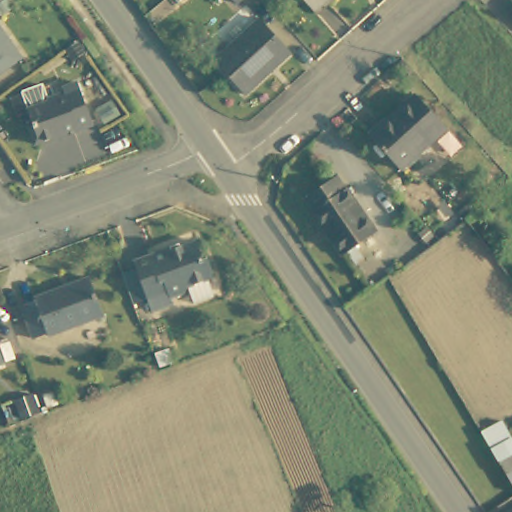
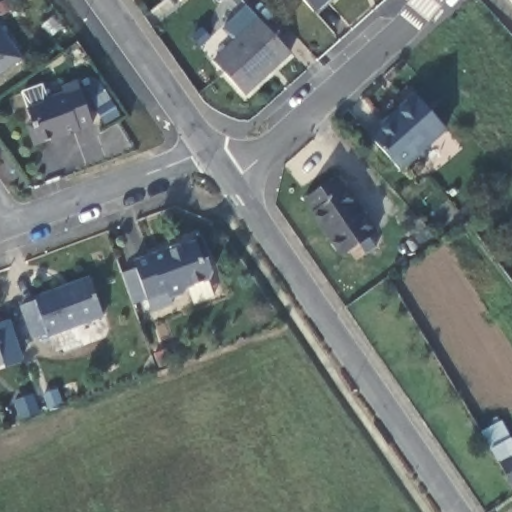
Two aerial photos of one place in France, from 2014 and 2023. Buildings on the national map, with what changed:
unchanged [(231,0),(241,0),(236,5),(231,0)]
unchanged [(309,0),(328,0),(317,10),(309,0)]
unchanged [(293,49),(247,91),(217,58),(239,38),(232,30),(244,19),(252,27),(263,16),(293,49)]
unchanged [(0,65),(0,25),(19,51),(0,65)]
unchanged [(50,96),(67,89),(65,84),(80,78),(96,119),(37,142),(29,120),(34,118),(29,106),(51,99),(50,96)]
unchanged [(403,168),(372,136),(418,95),(448,127),(403,168)]
unchanged [(337,173),(374,230),(337,254),(325,235),(327,233),(302,195),(337,173)]
unchanged [(170,246),(194,235),(202,255),(206,252),(212,264),(208,272),(187,281),(185,288),(171,293),(173,299),(152,307),(133,256),(167,241),(170,246)]
unchanged [(34,293),(89,272),(104,312),(47,333),(47,331),(33,336),(21,301),(35,296),(34,293)]
unchanged [(39,408),(21,415),(19,410),(22,409),(17,396),(32,390),(39,408)]
unchanged [(497,420),(500,424),(512,445),(512,454),(508,456),(512,462),(512,490),(477,432),(497,420)]

